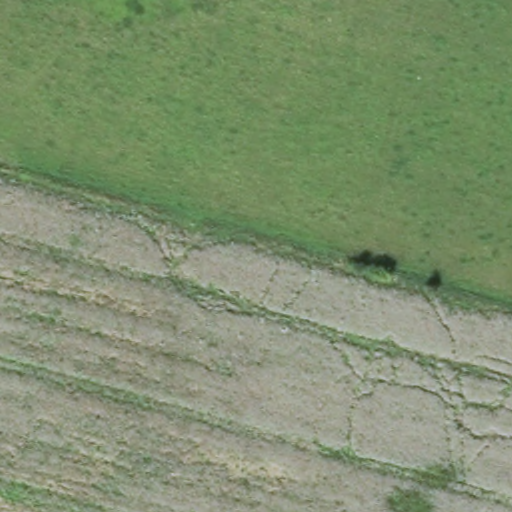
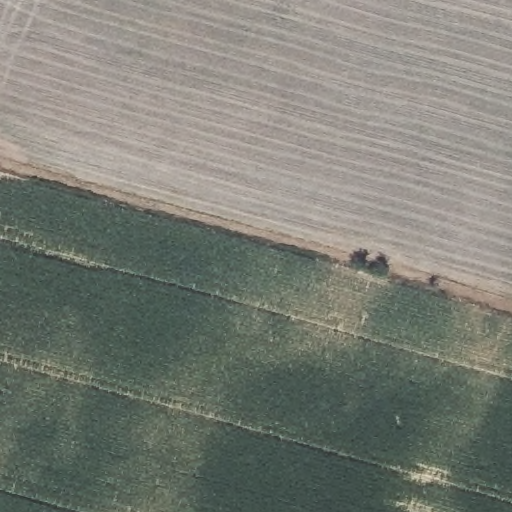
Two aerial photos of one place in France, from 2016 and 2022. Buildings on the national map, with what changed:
[]

